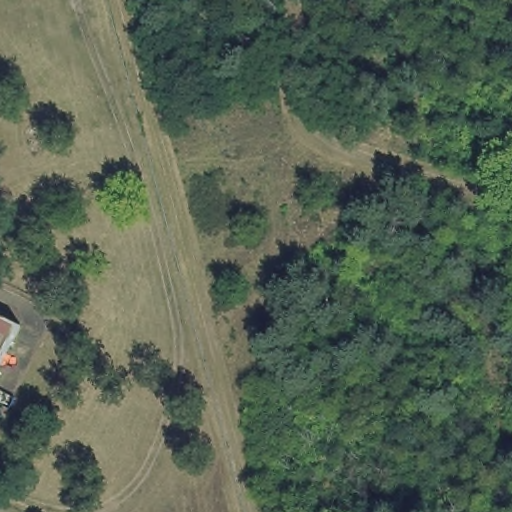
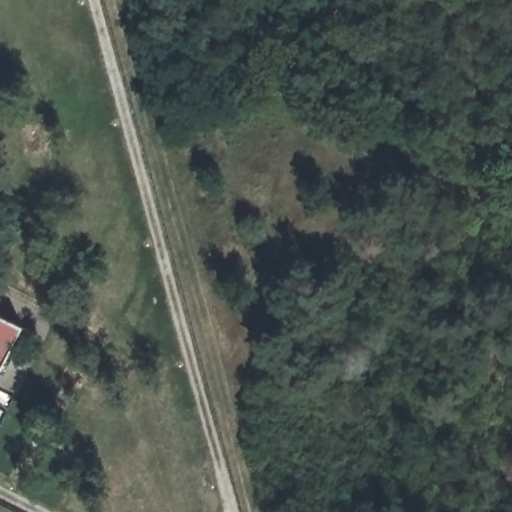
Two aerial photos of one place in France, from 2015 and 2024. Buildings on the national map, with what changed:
unchanged [(0,313),(21,324),(0,365),(0,313)]

